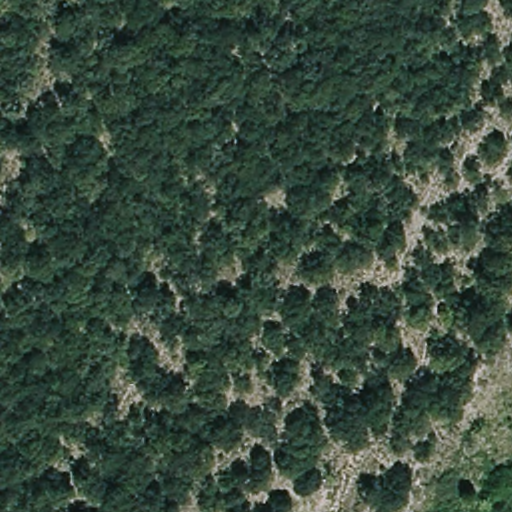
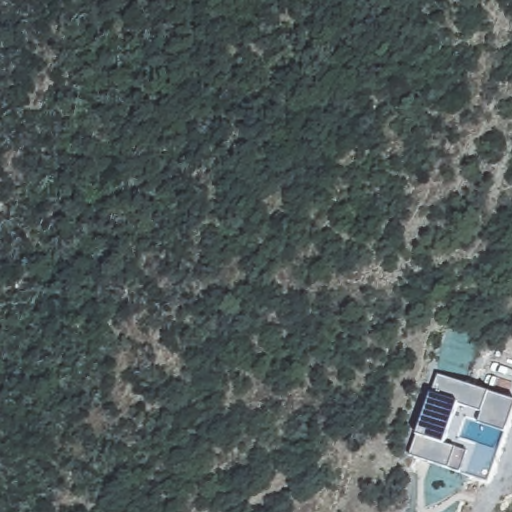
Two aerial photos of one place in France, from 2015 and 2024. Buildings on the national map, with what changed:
new [(438,377),(512,401),(512,418),(503,447),(498,445),(494,459),(498,460),(490,484),(411,457),(438,377)]

